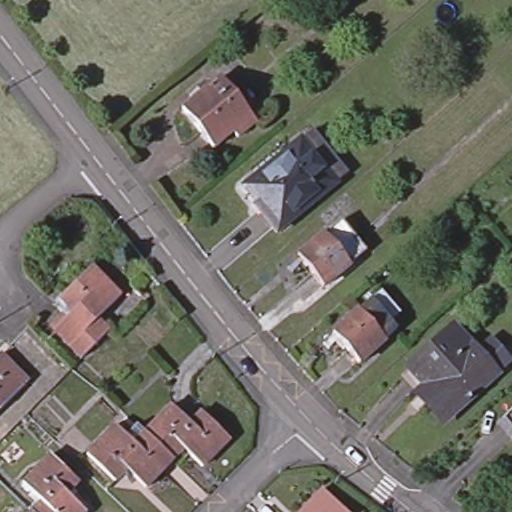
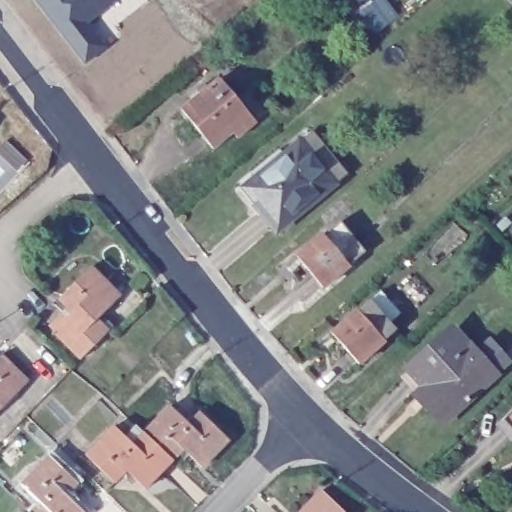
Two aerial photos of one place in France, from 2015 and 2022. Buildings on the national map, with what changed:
new [(108,47),(85,64),(36,0),(119,0),(91,23),(108,47)]
unchanged [(255,119),(236,134),(232,129),(212,145),(181,107),(192,98),(187,93),(203,80),(208,86),(220,76),(255,119)]
unchanged [(255,205),(258,203),(249,193),(242,185),(255,174),(250,168),(276,145),(282,152),(297,140),(302,135),(310,129),(315,136),(343,172),(332,181),(276,229),(255,205)]
unchanged [(340,219),(364,249),(322,284),(297,254),(336,222),(340,219)]
unchanged [(58,296),(91,265),(121,294),(97,316),(109,329),(82,357),(50,324),(68,306),(58,296)]
unchanged [(400,326),(362,360),(337,331),(374,298),(400,326)]
unchanged [(432,381),(415,363),(460,323),(501,368),(450,416),(433,397),(425,388),(432,381)]
unchanged [(1,352),(28,380),(0,408),(0,353),(1,352)]
unchanged [(125,433),(135,422),(143,431),(172,402),(190,420),(200,409),(229,437),(201,466),(182,448),(172,458),(171,460),(145,487),(127,469),(115,480),(87,453),(115,424),(125,433)]
unchanged [(512,405),(512,435),(497,419),(512,405)]
unchanged [(42,501),(22,482),(50,453),(79,481),(67,493),(87,511),(87,512),(31,512),(42,501)]
unchanged [(322,488),(347,512),(298,512),(322,488)]

